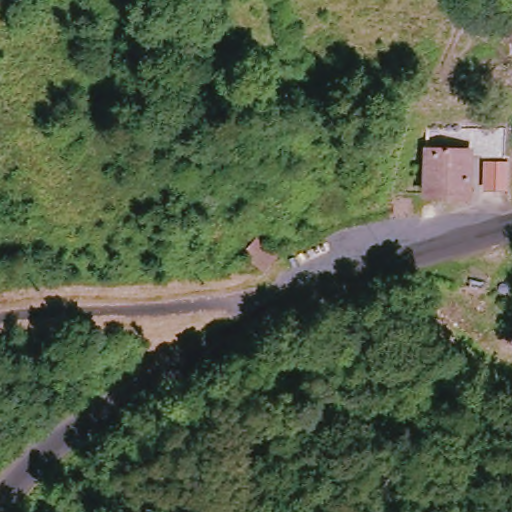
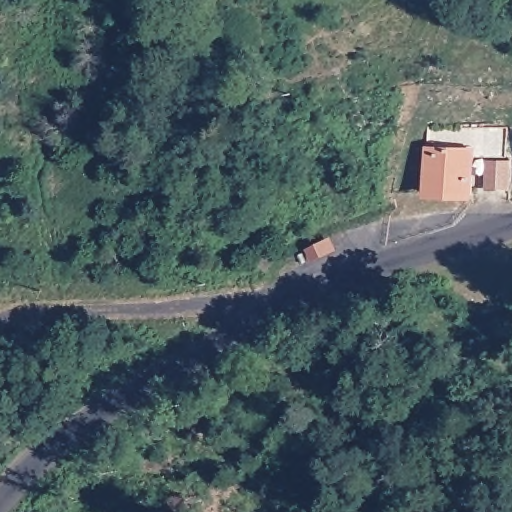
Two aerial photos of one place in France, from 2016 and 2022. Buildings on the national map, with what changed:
unchanged [(420,203),(421,163),(465,162),(465,138),(496,138),(496,166),(465,168),(466,201),(420,203)]
unchanged [(245,250),(258,235),(277,253),(264,267),(245,250)]

